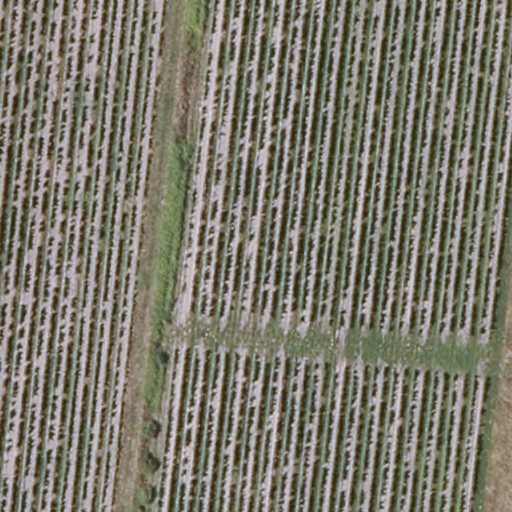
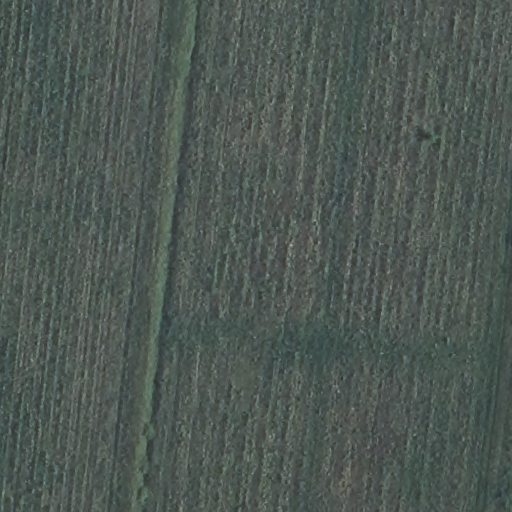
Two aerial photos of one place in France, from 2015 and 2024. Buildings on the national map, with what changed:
[]

